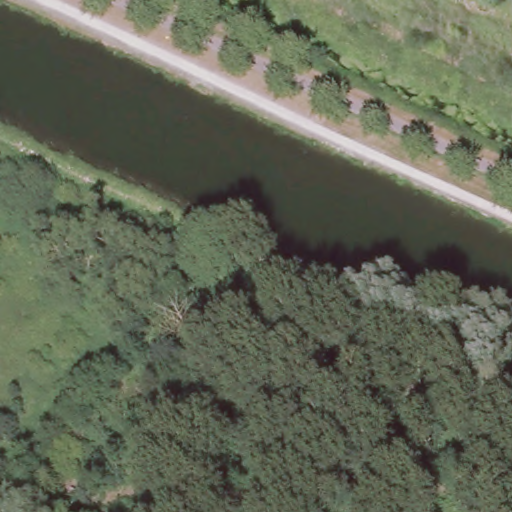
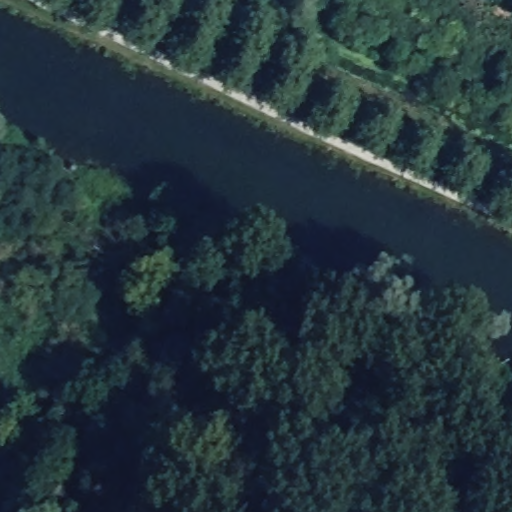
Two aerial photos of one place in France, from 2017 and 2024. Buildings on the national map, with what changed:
unchanged [(131,431),(108,410),(123,391),(146,409),(131,431)]

